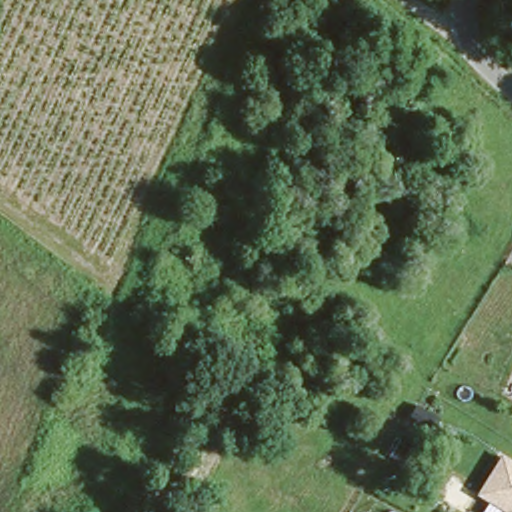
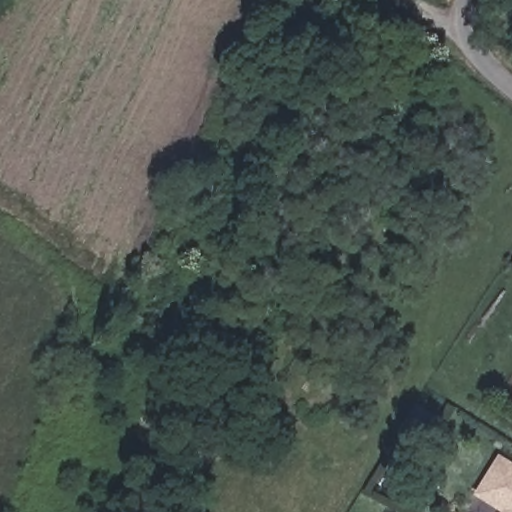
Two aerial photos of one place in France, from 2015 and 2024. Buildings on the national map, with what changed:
unchanged [(499,460),(512,467),(512,512),(506,512),(478,496),(499,460)]

